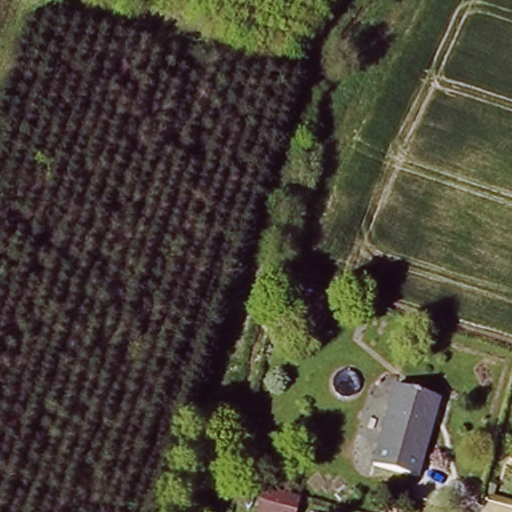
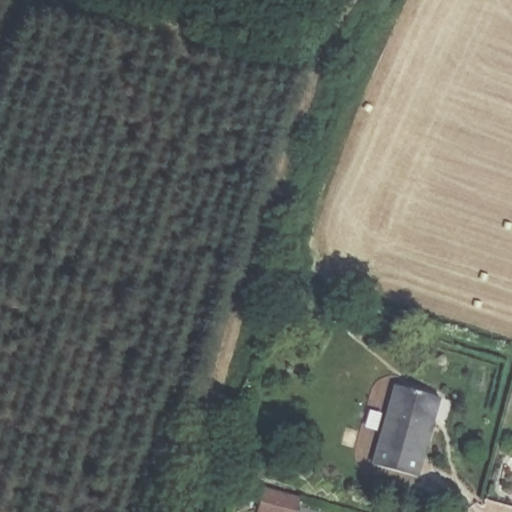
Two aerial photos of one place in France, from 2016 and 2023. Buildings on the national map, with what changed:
unchanged [(396,383),(440,396),(417,475),(374,462),(396,383)]
unchanged [(235,465),(250,469),(247,480),(232,476),(235,465)]
unchanged [(265,485),(303,494),(300,512),(257,512),(265,485)]

